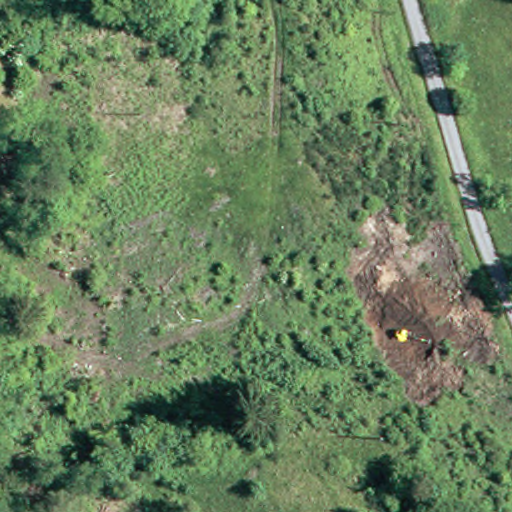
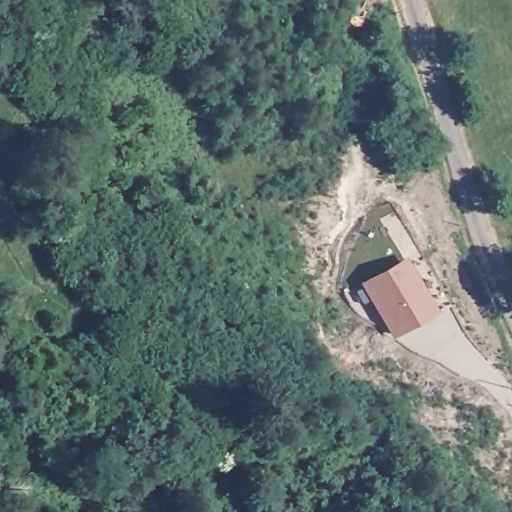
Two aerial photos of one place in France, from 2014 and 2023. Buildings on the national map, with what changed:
new [(406,257),(440,313),(396,340),(362,283),(406,257)]

